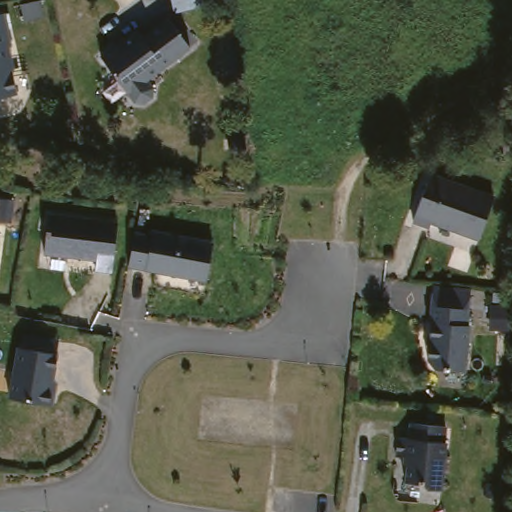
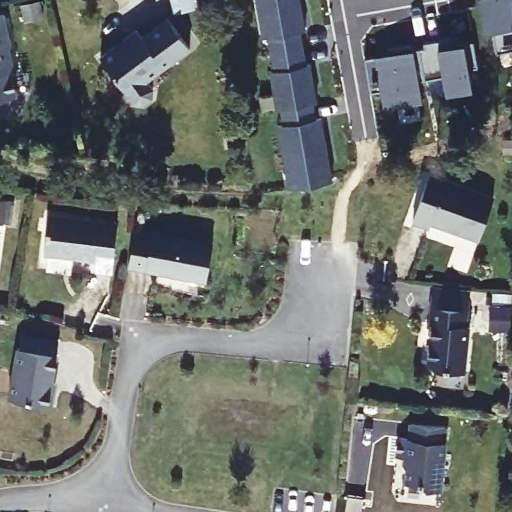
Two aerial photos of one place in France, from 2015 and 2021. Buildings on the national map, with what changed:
unchanged [(15,0),(35,0),(36,11),(17,14),(15,0)]
unchanged [(172,0),(202,0),(203,1),(180,13),(172,0)]
new [(277,158),(270,114),(276,114),(273,97),(269,98),(263,61),(267,61),(261,27),(256,29),(251,0),(295,0),(296,3),(300,24),(295,25),(301,59),(305,58),(311,96),(307,97),(310,113),(315,112),(321,147),(326,174),(320,174),(287,175),(281,176),(277,158)]
new [(493,0),(512,0),(512,53),(495,56),(492,32),(485,33),(480,2),(493,0)]
unchanged [(10,46),(8,47),(12,70),(11,73),(15,96),(0,99),(0,14),(4,14),(10,46)]
unchanged [(135,38),(140,45),(166,24),(190,53),(145,88),(152,97),(151,106),(142,113),(133,112),(97,67),(135,38)]
new [(427,52),(426,48),(460,42),(461,49),(478,47),(482,72),(472,73),(475,89),(448,93),(446,81),(426,84),(421,53),(427,52)]
new [(391,58),(391,53),(415,50),(415,54),(421,53),(426,84),(420,85),(423,105),(386,111),(383,94),(373,96),(366,62),(391,58)]
unchanged [(222,115),(237,113),(241,131),(225,134),(222,115)]
unchanged [(512,141),(512,155),(501,155),(501,140),(512,141)]
unchanged [(491,201),(476,243),(445,233),(446,231),(428,224),(425,231),(409,225),(425,178),(491,201)]
unchanged [(5,223),(0,222),(0,199),(6,199),(5,223)]
unchanged [(41,219),(110,225),(106,275),(90,274),(90,264),(37,259),(41,219)]
unchanged [(208,244),(201,282),(155,274),(122,268),(128,235),(146,238),(151,239),(152,234),(208,244)]
unchanged [(462,338),(458,385),(427,382),(420,374),(424,337),(421,336),(423,318),(425,296),(463,300),(461,322),(460,338),(462,338)]
unchanged [(49,394),(52,399),(49,415),(5,408),(14,357),(15,357),(17,343),(54,349),(52,362),(54,363),(49,394)]
unchanged [(406,459),(394,458),(396,438),(407,439),(409,423),(450,427),(448,442),(450,443),(445,492),(431,490),(428,486),(403,484),(406,459)]

